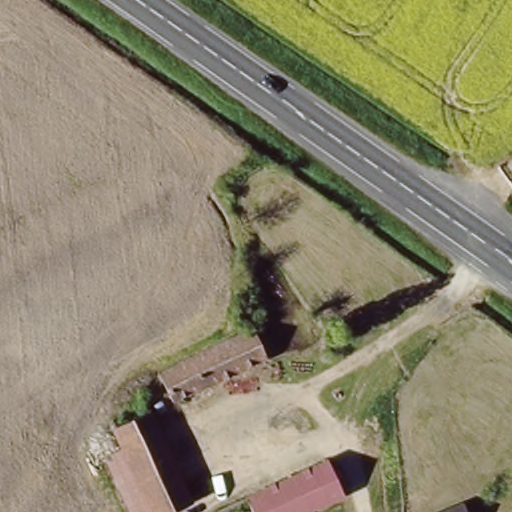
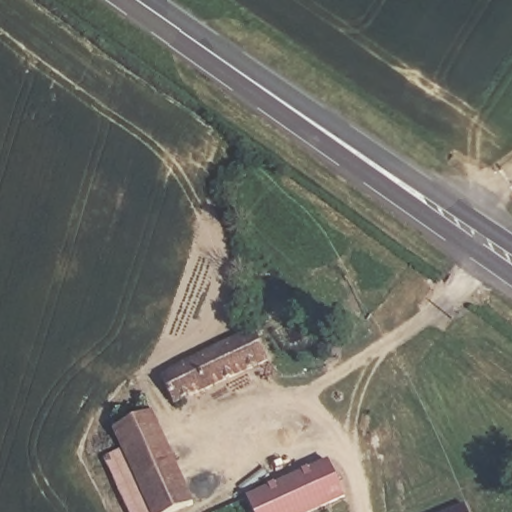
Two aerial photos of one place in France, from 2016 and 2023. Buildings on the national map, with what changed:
unchanged [(259,322),(263,329),(272,349),(161,403),(154,389),(161,386),(153,371),(259,322)]
unchanged [(157,512),(154,512),(152,506),(127,438),(120,420),(157,406),(191,499),(157,512)]
unchanged [(133,512),(131,512),(104,446),(127,438),(152,506),(133,512)]
unchanged [(257,512),(255,507),(246,512),(202,512),(333,450),(347,485),(290,512),(257,512)]
unchanged [(436,512),(472,496),(478,512),(436,512)]

